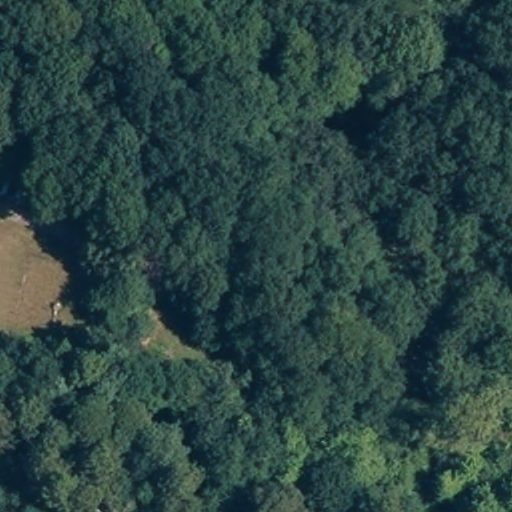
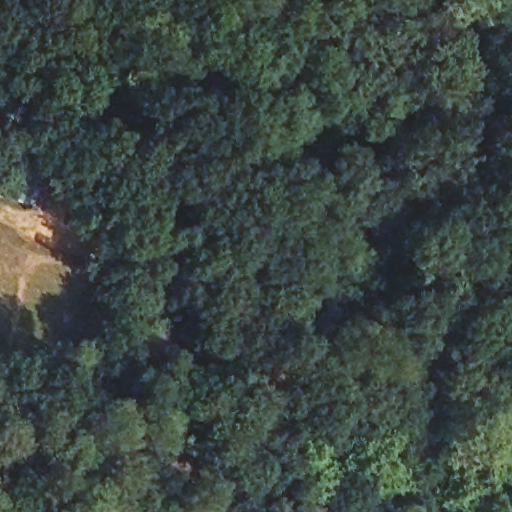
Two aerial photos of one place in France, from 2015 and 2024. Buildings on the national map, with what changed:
unchanged [(0,205),(0,178),(23,185),(15,210),(0,205)]

